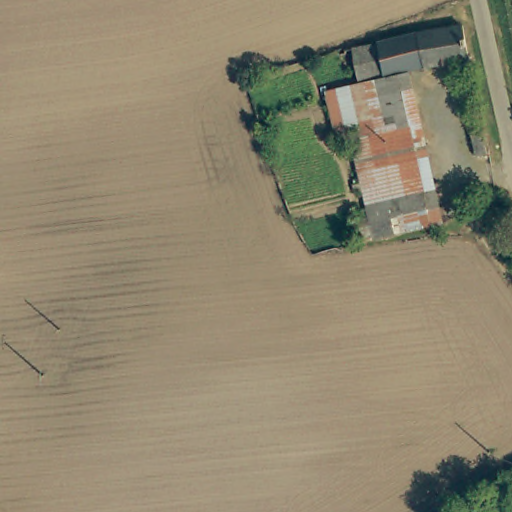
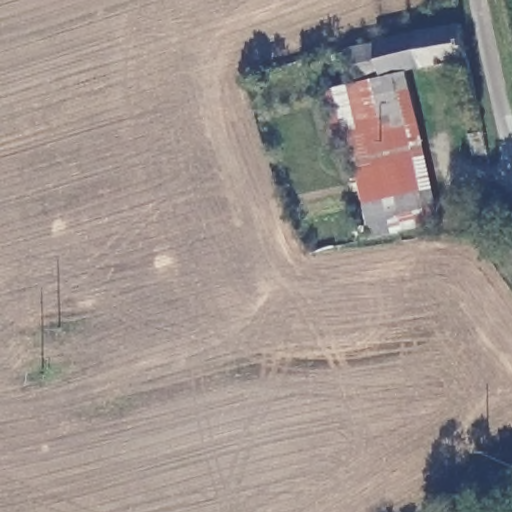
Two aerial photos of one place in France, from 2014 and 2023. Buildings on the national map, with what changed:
unchanged [(405,72),(397,75),(372,84),(356,89),(346,57),(361,52),(456,19),(466,52),(405,72)]
unchanged [(356,89),(372,84),(397,75),(405,72),(417,122),(412,124),(350,147),(338,151),(335,142),(323,101),(356,89)]
unchanged [(412,124),(417,122),(430,169),(444,225),(380,246),(350,147),(412,124)]

